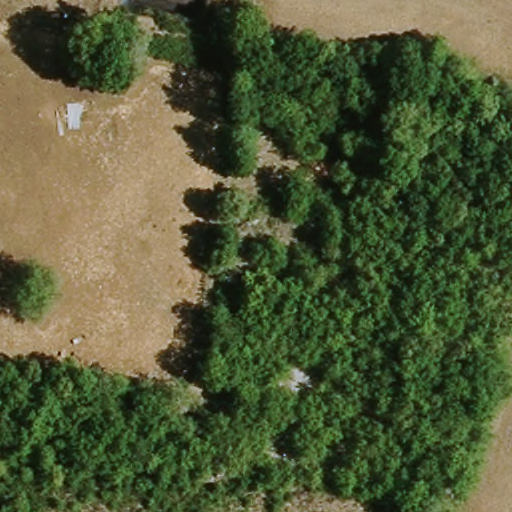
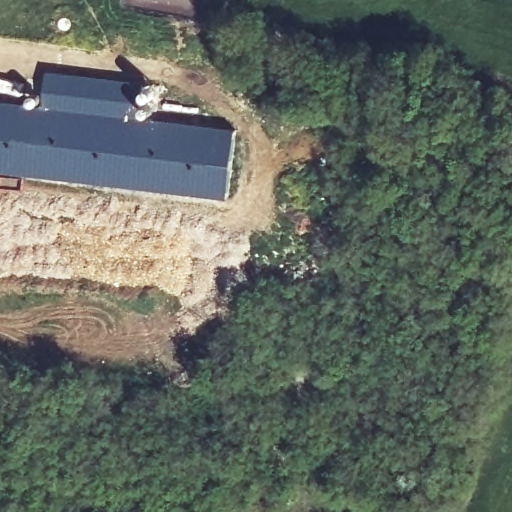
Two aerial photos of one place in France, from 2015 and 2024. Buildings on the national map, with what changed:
new [(45,111),(48,76),(144,84),(142,119),(239,127),(233,194),(0,172),(0,106),(45,111)]

